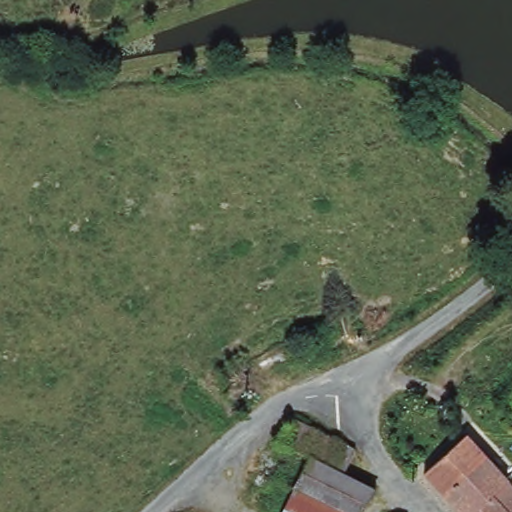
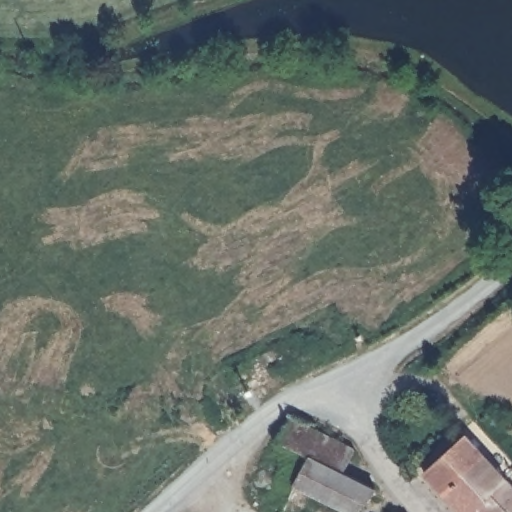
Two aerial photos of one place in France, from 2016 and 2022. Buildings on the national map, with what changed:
unchanged [(340,468),(373,486),(351,512),(345,512),(298,490),(315,459),(275,437),(287,413),(350,444),(340,468)]
unchanged [(459,512),(425,475),(463,435),(492,465),(508,482),(477,512),(459,512)]
unchanged [(512,512),(477,512),(508,482),(512,487),(512,512)]
unchanged [(298,490),(345,512),(283,512),(296,488),(298,490)]

